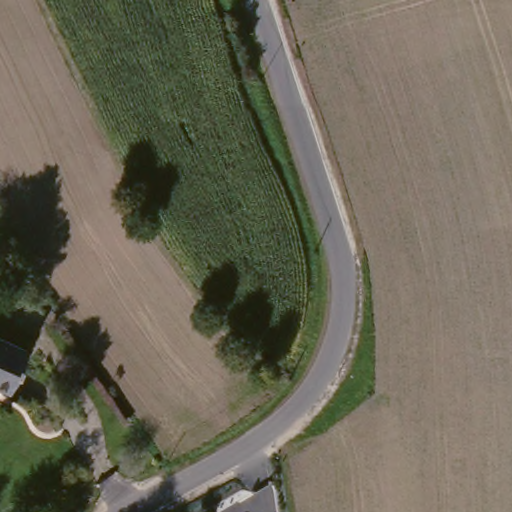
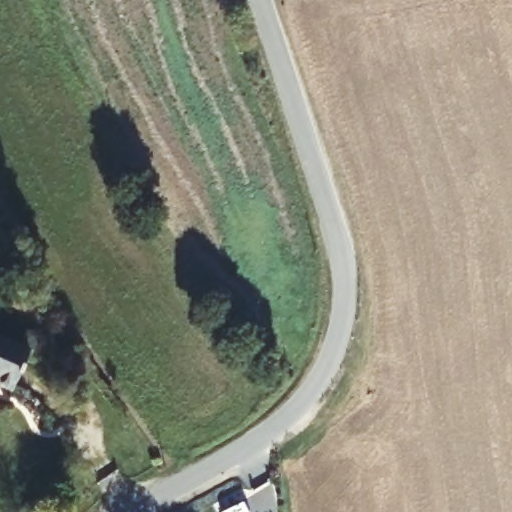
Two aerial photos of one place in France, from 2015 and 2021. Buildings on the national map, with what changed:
unchanged [(0,388),(0,340),(23,351),(5,391),(4,389),(0,388)]

